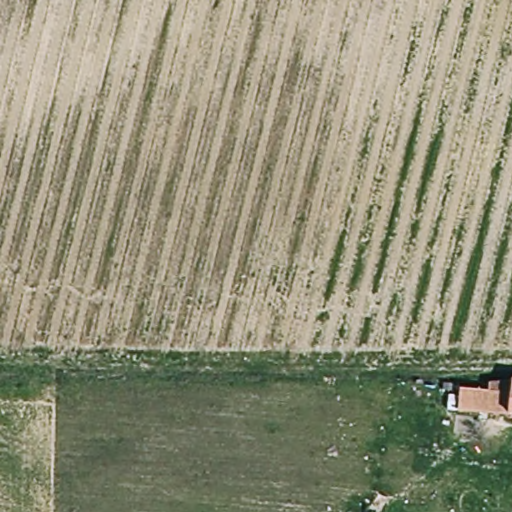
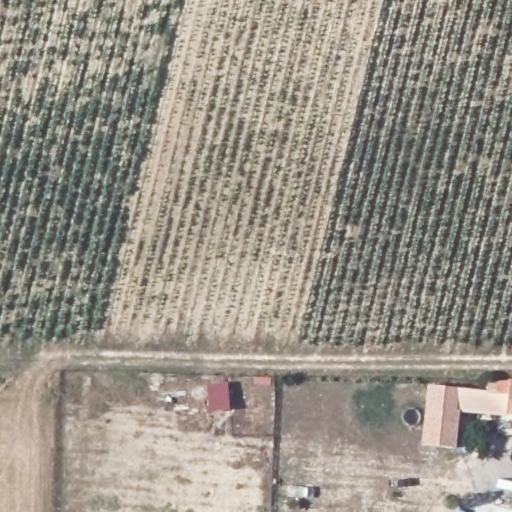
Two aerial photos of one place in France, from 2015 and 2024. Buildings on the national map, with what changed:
unchanged [(456,390),(479,390),(479,382),(512,382),(512,413),(456,412),(456,390)]
new [(456,412),(461,412),(457,448),(424,445),(430,385),(456,390),(456,412)]

